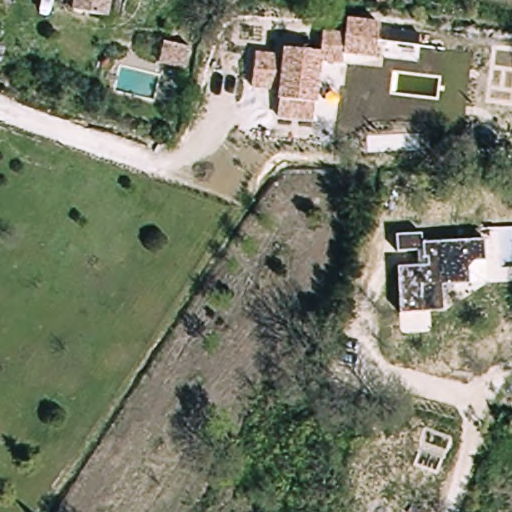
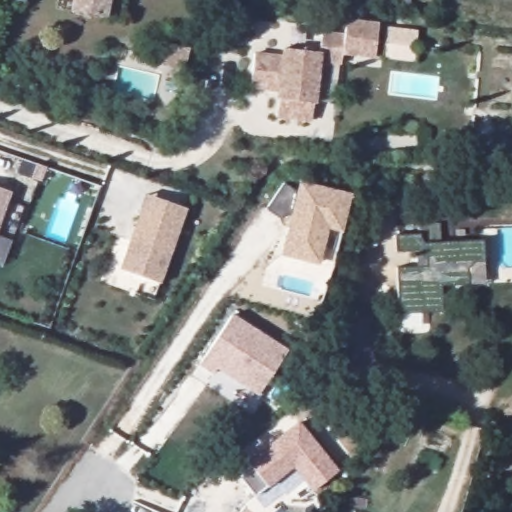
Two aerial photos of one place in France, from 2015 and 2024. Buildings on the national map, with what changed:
unchanged [(110,15),(76,10),(77,0),(112,0),(110,15)]
unchanged [(376,5),(376,0),(411,0),(410,6),(376,5)]
unchanged [(341,64),(320,62),(315,102),(312,121),(277,117),(278,99),(278,90),(253,87),(257,52),(282,55),(282,48),(321,51),(323,31),(345,31),(346,17),(380,22),(375,57),(345,54),(341,64)]
unchanged [(161,62),(165,43),(191,48),(185,69),(161,62)]
new [(296,191),(298,181),(351,194),(342,232),(328,230),(320,266),(280,257),(290,215),(283,213),(279,220),(265,210),(283,184),(296,191)]
new [(11,189),(0,220),(0,185),(11,189)]
new [(187,207),(160,285),(120,269),(146,194),(187,207)]
unchanged [(441,283),(442,309),(401,312),(397,268),(419,267),(416,252),(397,252),(395,234),(420,234),(423,245),(485,240),(486,282),(441,283)]
new [(288,350),(257,397),(218,369),(215,375),(199,364),(231,313),(288,350)]
new [(253,468),(248,462),(299,422),(338,472),(314,491),(295,466),(255,497),(241,480),(253,468)]

